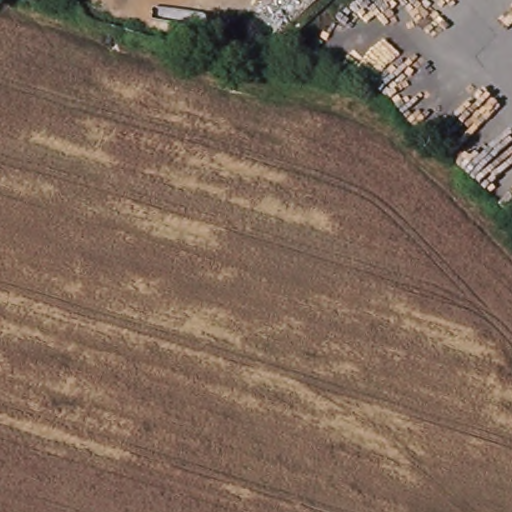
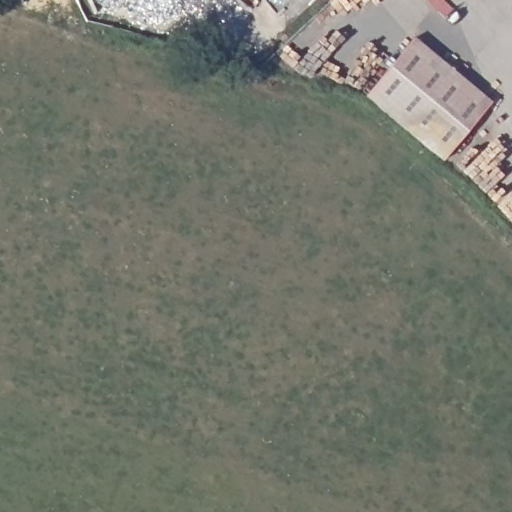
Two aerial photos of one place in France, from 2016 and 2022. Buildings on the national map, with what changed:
new [(414,38),(491,102),(443,160),(365,96),(414,38)]

